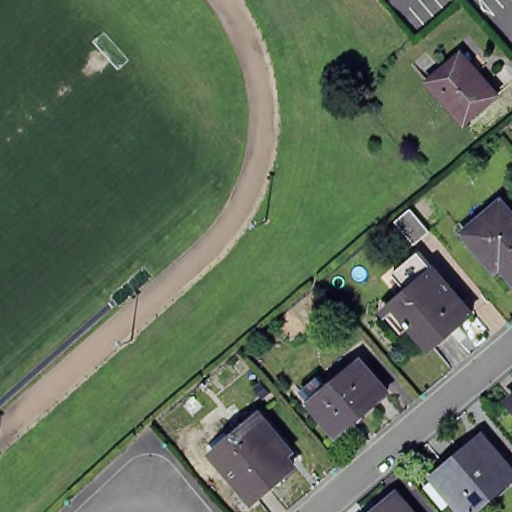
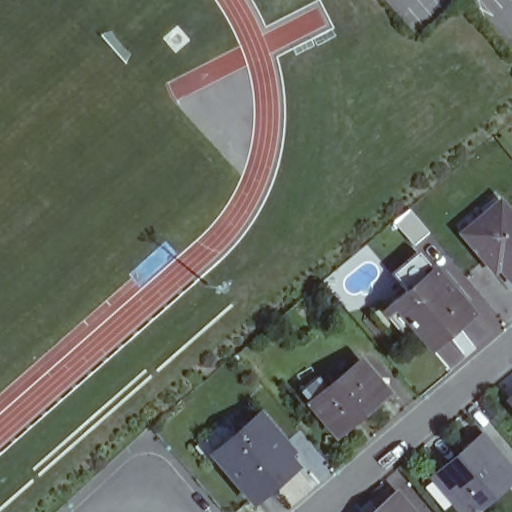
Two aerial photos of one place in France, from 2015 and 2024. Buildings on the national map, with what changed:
demolished [(459,53),(494,95),(460,124),(426,81),(459,53)]
unchanged [(512,211),(512,280),(504,270),(499,273),(469,236),(507,205),(512,211)]
unchanged [(478,311),(439,344),(419,322),(409,331),(389,307),(439,265),(478,311)]
unchanged [(389,394),(339,437),(311,405),(362,362),(389,394)]
unchanged [(293,459),(286,464),(294,473),(253,507),(209,454),(226,440),(233,447),(263,422),(293,459)]
unchanged [(511,478),(469,512),(455,512),(429,480),(463,453),(465,455),(482,442),(511,478)]
unchanged [(415,512),(378,512),(399,494),(415,512)]

